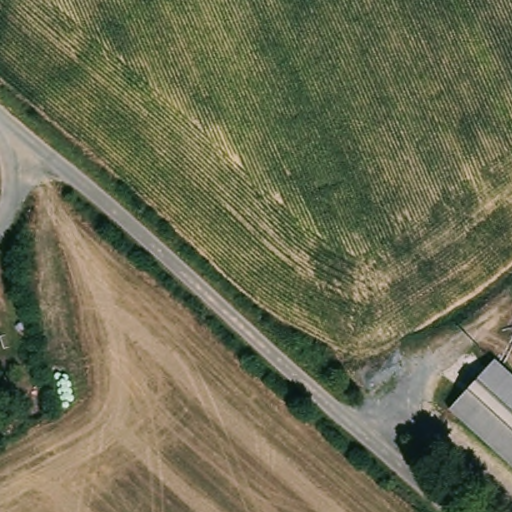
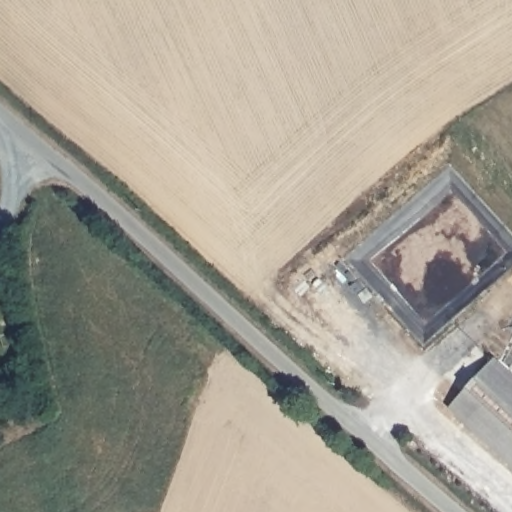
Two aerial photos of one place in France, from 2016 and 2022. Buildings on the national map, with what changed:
unchanged [(451,411),(495,361),(512,377),(512,466),(495,451),(451,411)]

